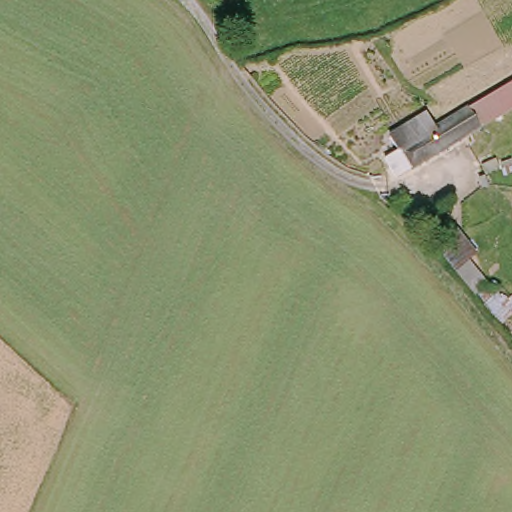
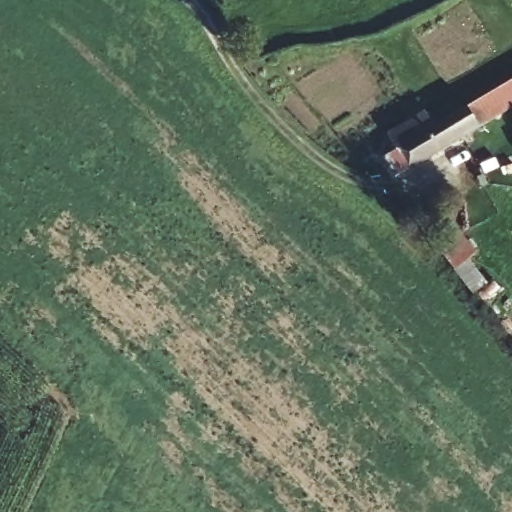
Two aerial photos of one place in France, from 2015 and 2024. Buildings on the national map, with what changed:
unchanged [(388,146),(440,115),(445,122),(512,84),(512,110),(404,170),(393,155),(388,146)]
unchanged [(415,223),(440,202),(478,255),(471,260),(490,285),(477,300),(415,223)]

